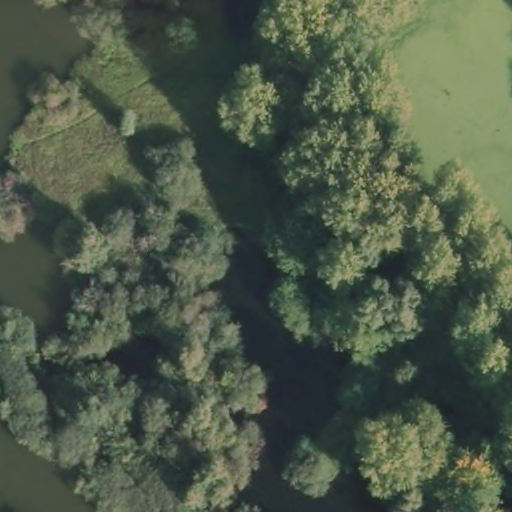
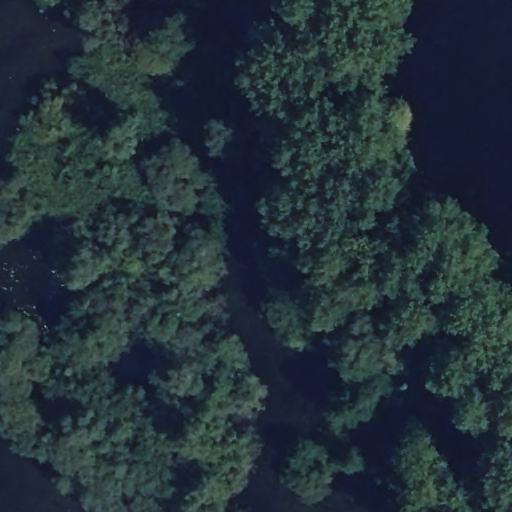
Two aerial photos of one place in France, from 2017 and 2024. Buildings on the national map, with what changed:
unchanged [(354,330),(359,326),(342,303),(367,287),(401,339),(379,354),(371,343),(365,347),(354,330)]

